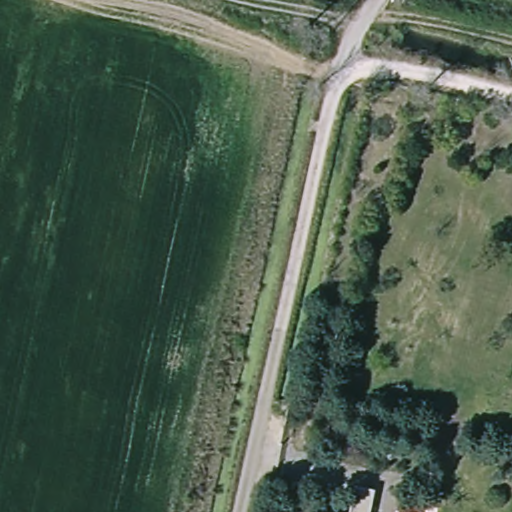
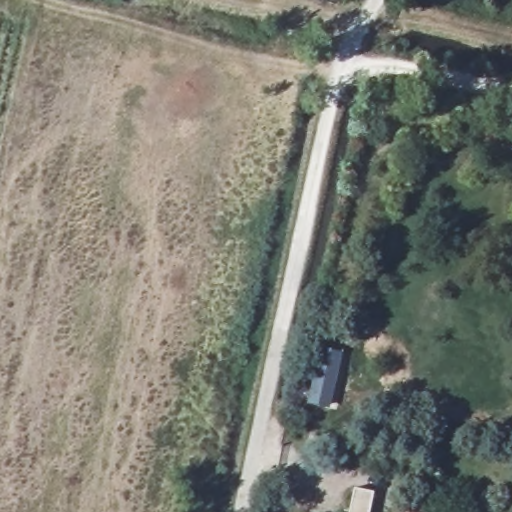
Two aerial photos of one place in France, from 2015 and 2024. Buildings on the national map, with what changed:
new [(331,410),(307,405),(320,348),(343,353),(331,410)]

